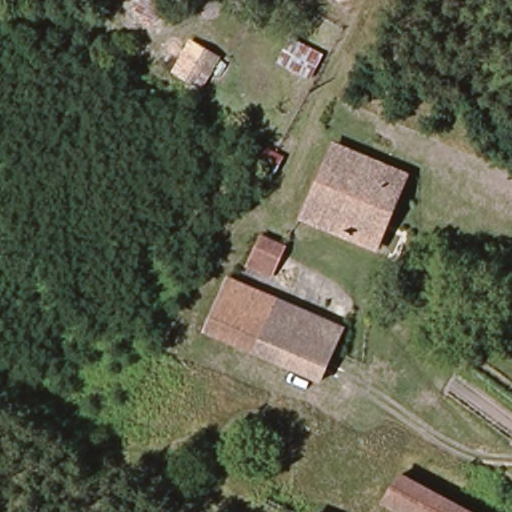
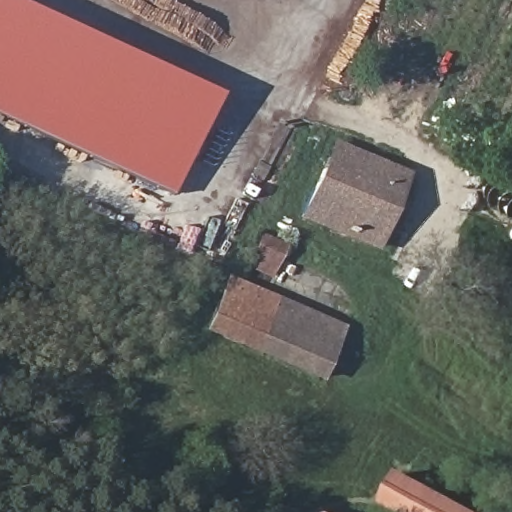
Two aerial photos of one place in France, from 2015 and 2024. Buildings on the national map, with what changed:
new [(0,118),(0,0),(5,0),(215,98),(169,197),(0,118)]
demolished [(202,92),(173,74),(192,40),(221,59),(202,92)]
unchanged [(305,216),(336,148),(395,174),(403,178),(372,246),(305,216)]
unchanged [(295,238),(282,267),(254,257),(269,226),(295,238)]
unchanged [(324,386),(203,332),(234,276),(347,327),(324,386)]
unchanged [(400,475),(465,512),(406,512),(385,501),(400,475)]

